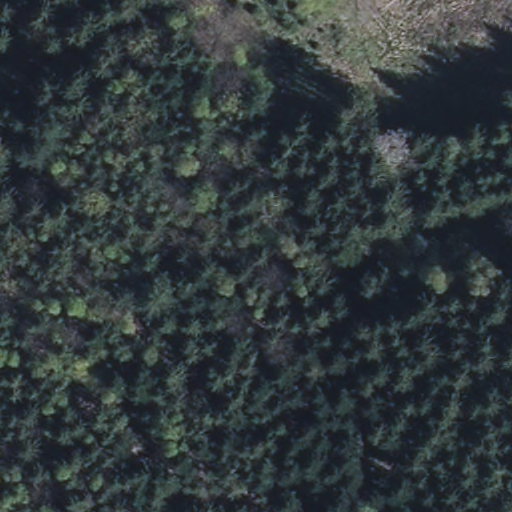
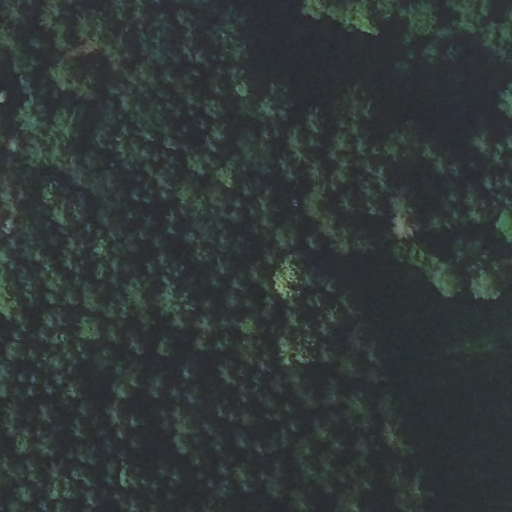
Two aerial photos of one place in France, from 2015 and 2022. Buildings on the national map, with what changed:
[]

